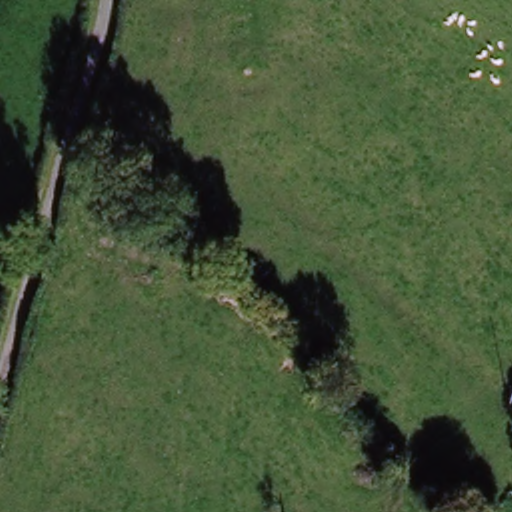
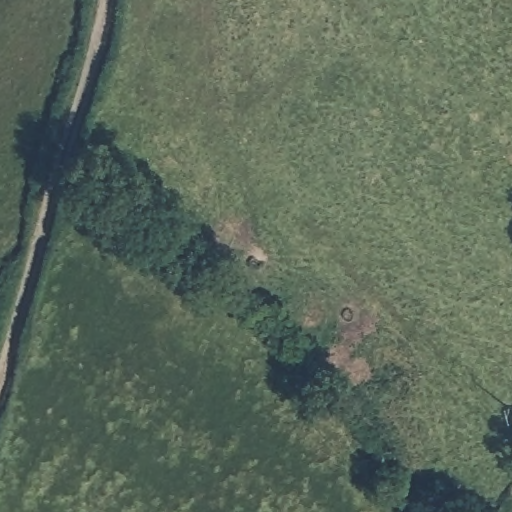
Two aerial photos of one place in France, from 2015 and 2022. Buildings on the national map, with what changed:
unchanged [(253,262),(268,274),(245,300),(232,285),(253,262)]

